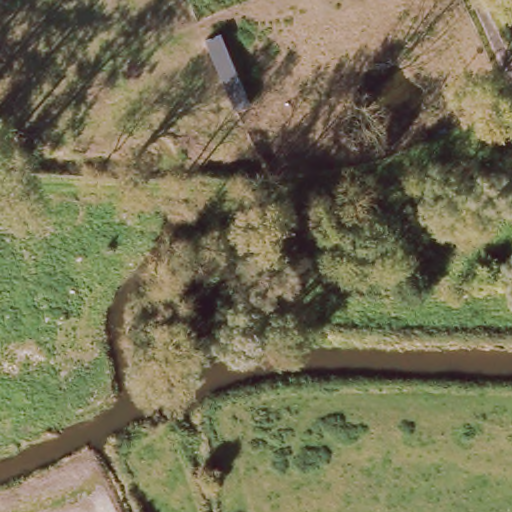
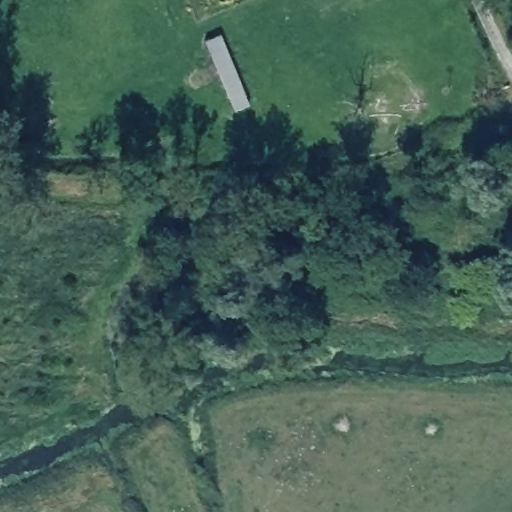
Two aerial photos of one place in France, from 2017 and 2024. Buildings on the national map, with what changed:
unchanged [(201,41),(218,34),(250,107),(234,112),(201,41)]

